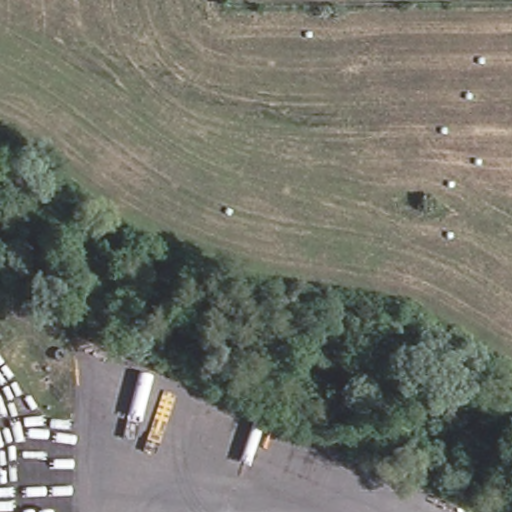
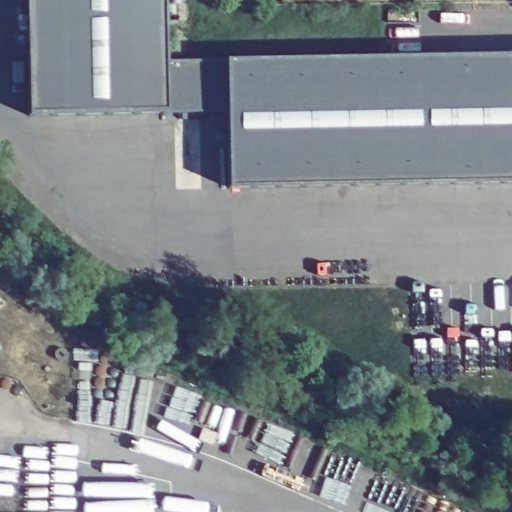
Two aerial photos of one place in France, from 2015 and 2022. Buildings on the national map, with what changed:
new [(165,112),(27,115),(26,0),(164,0),(166,63),(226,62),(512,56),(512,183),(230,187),(227,110),(165,112)]

